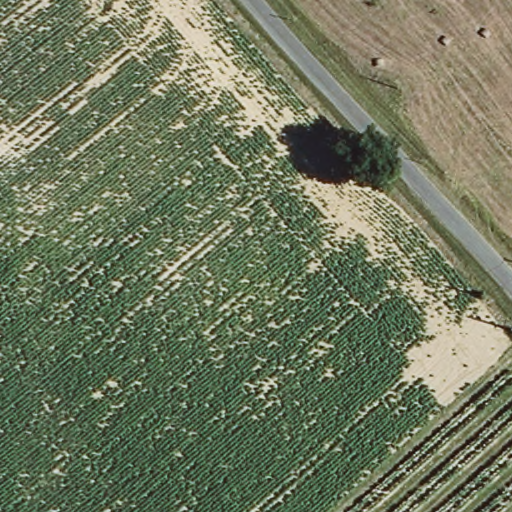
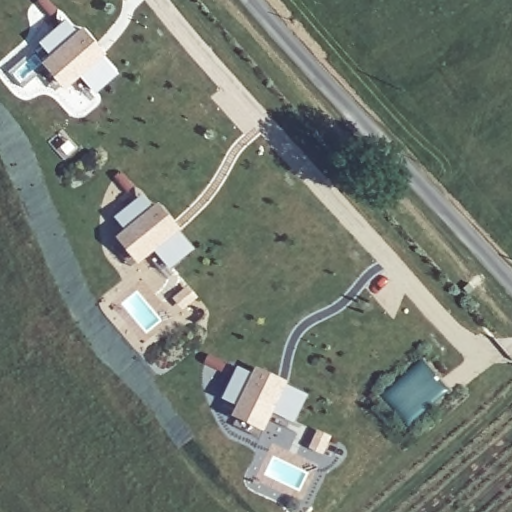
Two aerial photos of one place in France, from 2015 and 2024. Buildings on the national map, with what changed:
new [(46,39),(70,19),(81,32),(86,28),(106,50),(103,53),(116,69),(99,84),(84,68),(69,81),(50,58),(58,51),(46,39)]
new [(122,218),(146,198),(157,211),(163,207),(181,229),(178,232),(192,249),(174,264),(160,247),(144,259),(126,237),(133,230),(122,218)]
new [(229,395),(243,368),(258,375),(261,369),(288,382),(286,386),(306,396),(295,417),(275,407),(266,425),(240,412),(244,403),(229,395)]

